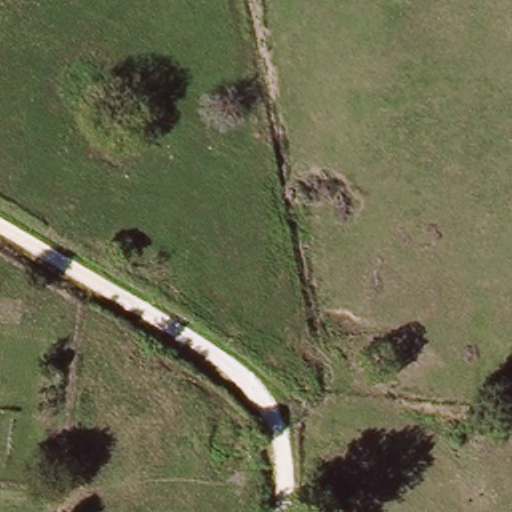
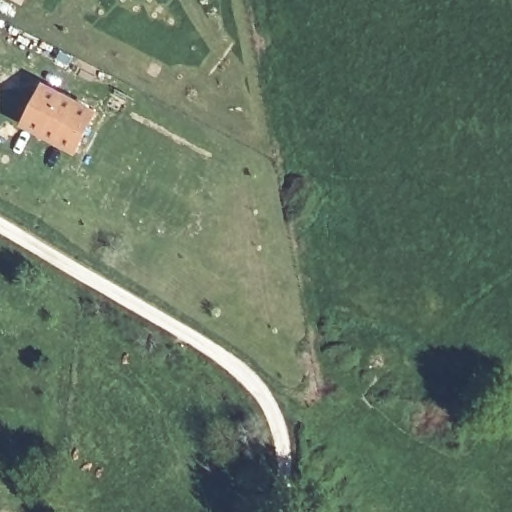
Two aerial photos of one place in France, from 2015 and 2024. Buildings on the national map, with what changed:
new [(99,112),(77,156),(20,125),(43,82),(99,112)]

